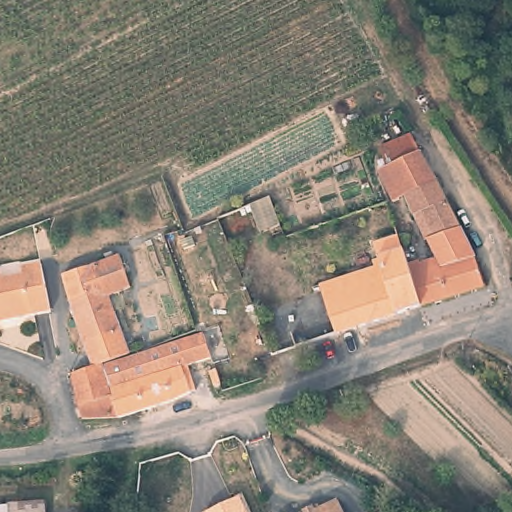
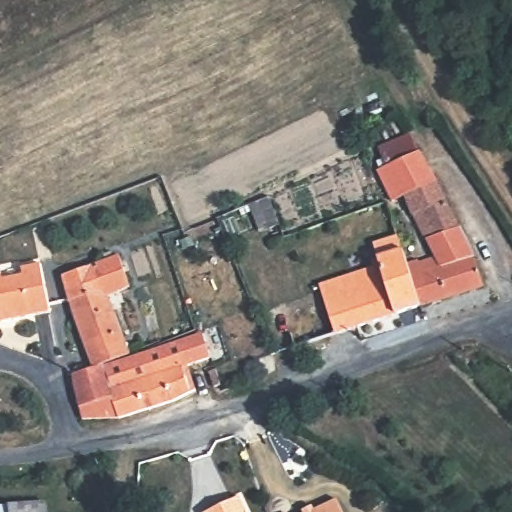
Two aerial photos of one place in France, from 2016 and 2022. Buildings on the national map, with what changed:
unchanged [(381,170),(380,166),(386,163),(384,158),(414,145),(419,155),(422,153),(438,182),(447,201),(475,260),(484,286),(422,306),(410,265),(420,262),(420,265),(438,259),(430,241),(435,239),(423,213),(415,217),(407,198),(395,204),(379,172),(381,170)]
unchanged [(269,197),(280,225),(230,244),(220,219),(269,197)]
unchanged [(319,286),(382,266),(380,259),(378,254),(378,246),(400,238),(405,252),(410,265),(422,306),(335,335),(319,286)]
unchanged [(114,255),(115,260),(121,258),(131,290),(110,298),(107,299),(111,312),(79,325),(64,278),(94,268),(108,263),(106,258),(114,255)]
unchanged [(4,281),(24,277),(23,269),(44,266),(52,313),(0,324),(0,274),(2,274),(4,281)]
unchanged [(94,370),(90,361),(85,344),(79,325),(111,312),(107,299),(110,298),(128,357),(105,366),(105,368),(113,398),(81,407),(74,376),(94,370)]
unchanged [(212,357),(184,367),(192,393),(175,401),(124,417),(85,421),(81,407),(113,398),(105,368),(145,355),(203,333),(212,357)]
unchanged [(46,512),(0,512),(0,507),(45,501),(46,512)]
unchanged [(335,503),(338,512),(312,512),(335,503)]
unchanged [(241,505),(244,512),(225,512),(241,505)]
unchanged [(300,512),(309,508),(310,512),(300,512)]

